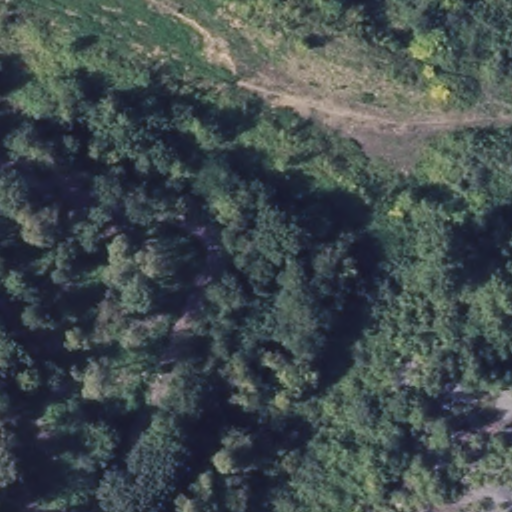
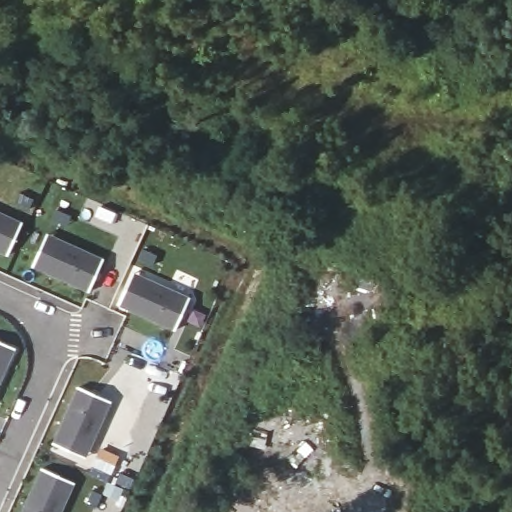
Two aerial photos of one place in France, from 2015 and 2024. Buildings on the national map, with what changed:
new [(20,194),(33,200),(29,209),(16,203),(20,194)]
new [(58,211),(71,217),(67,226),(53,220),(58,211)]
new [(5,260),(0,258),(0,218),(5,220),(20,227),(12,244),(5,260)]
new [(44,238),(58,244),(101,264),(86,296),(29,271),(36,255),(44,238)]
new [(143,250),(156,256),(153,265),(139,259),(143,250)]
new [(129,277),(144,283),(186,303),(171,335),(115,309),(121,293),(129,277)]
new [(0,387),(0,347),(15,354),(0,387)]
new [(67,457),(51,449),(77,393),(110,407),(90,450),(84,464),(67,457)]
new [(109,454),(118,458),(111,472),(103,468),(109,454)]
new [(73,489),(66,503),(62,512),(23,512),(40,474),(56,481),(73,489)]
new [(91,492),(101,496),(95,509),(86,505),(91,492)]

